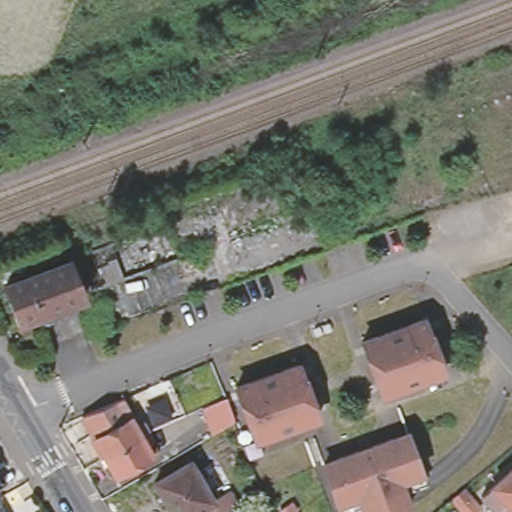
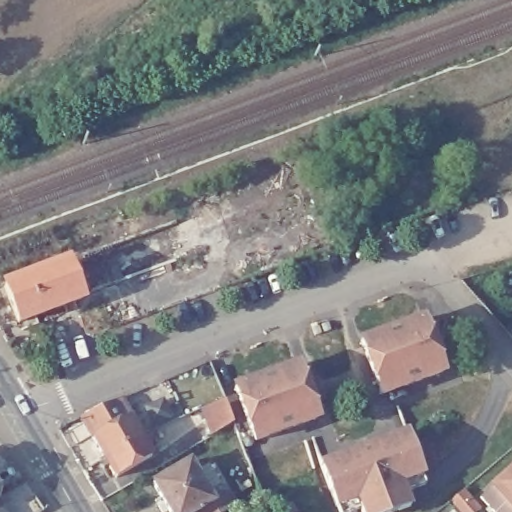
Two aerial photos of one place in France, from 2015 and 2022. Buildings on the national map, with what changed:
unchanged [(67,254),(82,292),(20,315),(5,277),(67,254)]
unchanged [(423,317),(443,372),(380,393),(360,339),(423,317)]
unchanged [(297,357),(317,412),(255,435),(235,380),(297,357)]
unchanged [(98,453),(87,432),(76,412),(113,397),(122,413),(128,422),(136,417),(142,427),(147,427),(149,428),(135,436),(147,456),(110,474),(98,453)]
unchanged [(214,439),(202,416),(225,406),(234,427),(214,439)]
unchanged [(322,466),(336,460),(335,457),(392,436),(392,440),(407,434),(420,468),(384,481),(386,487),(372,492),(370,486),(334,499),(322,466)]
unchanged [(211,512),(191,512),(189,508),(183,512),(168,512),(149,477),(182,458),(204,496),(219,488),(229,502),(211,512)]
unchanged [(485,486),(512,462),(512,512),(489,512),(475,496),(485,486)]
unchanged [(372,492),(386,487),(384,481),(420,468),(422,474),(402,482),(410,505),(391,512),(361,512),(355,497),(336,506),(334,499),(370,486),(372,492)]
unchanged [(0,512),(0,501),(5,512),(0,512)]

